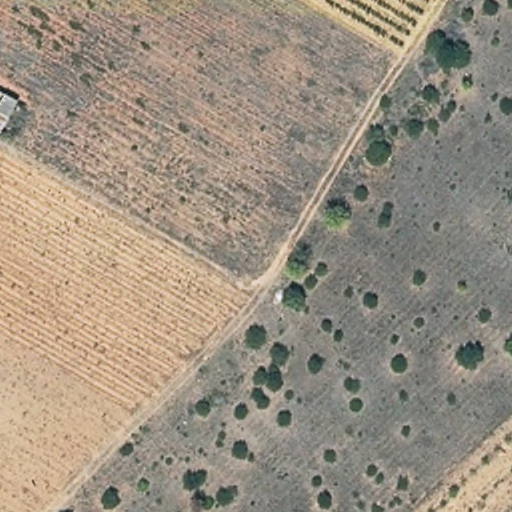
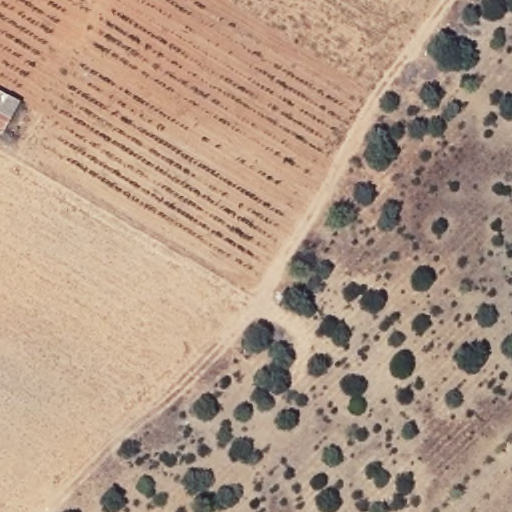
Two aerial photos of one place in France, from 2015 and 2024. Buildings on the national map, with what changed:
unchanged [(0,94),(18,100),(2,132),(0,132),(0,94)]

